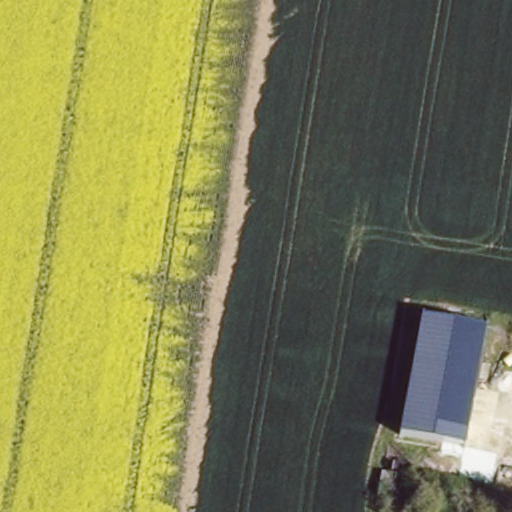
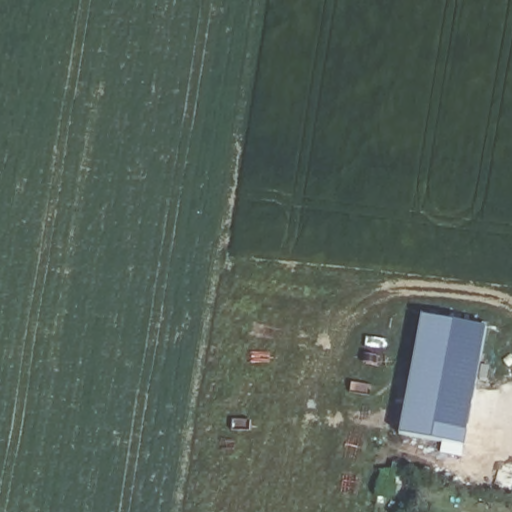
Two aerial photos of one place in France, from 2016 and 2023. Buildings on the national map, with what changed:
unchanged [(485,325),(462,444),(398,432),(422,310),(485,325)]
unchanged [(388,476),(385,499),(369,497),(372,474),(388,476)]

